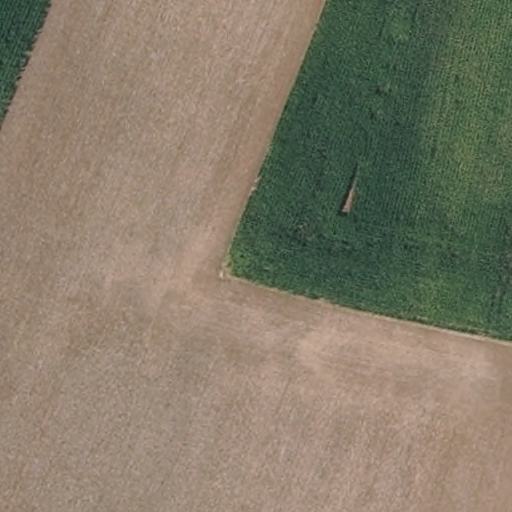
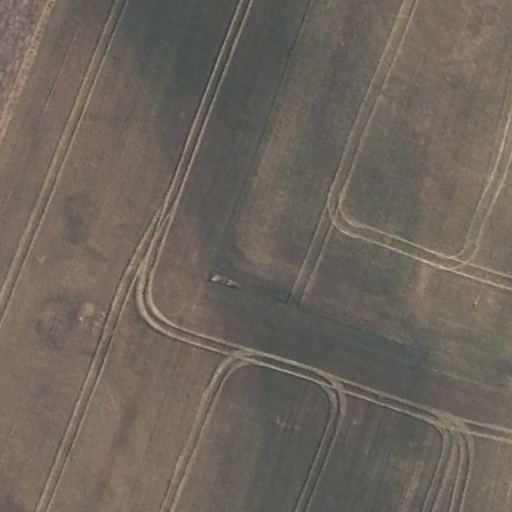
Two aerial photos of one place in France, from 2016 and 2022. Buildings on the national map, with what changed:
[]

